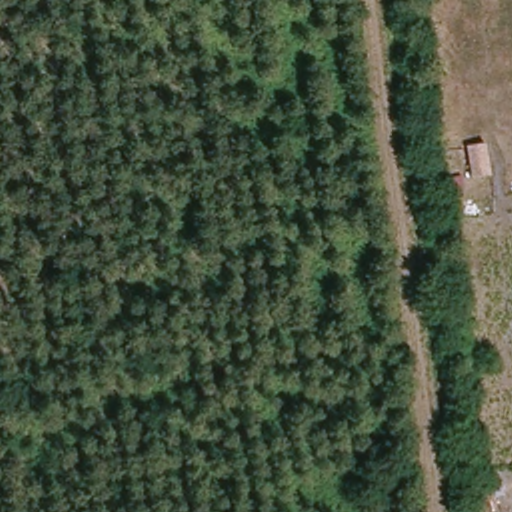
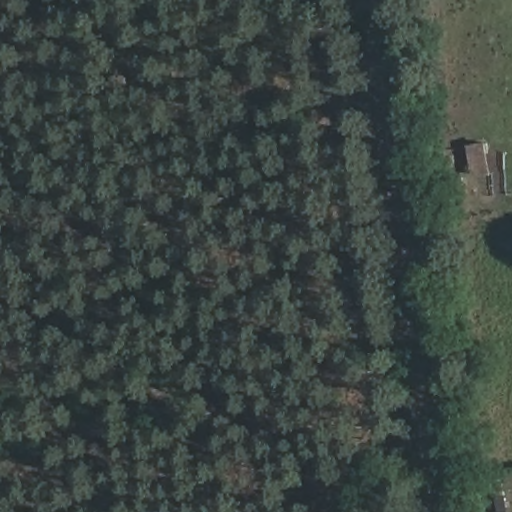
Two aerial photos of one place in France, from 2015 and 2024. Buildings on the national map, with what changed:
unchanged [(492,175),(472,179),(467,146),(487,144),(492,175)]

